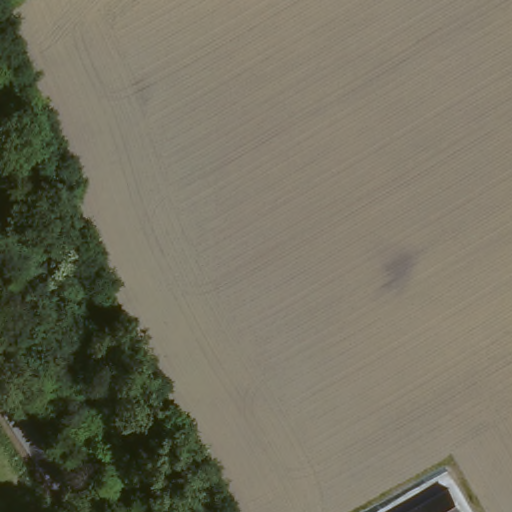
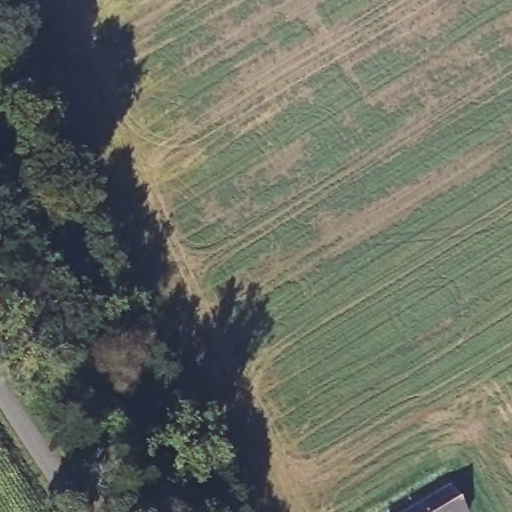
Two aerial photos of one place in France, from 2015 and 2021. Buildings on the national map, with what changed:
unchanged [(430,499),(446,488),(463,512),(411,512),(430,499)]

